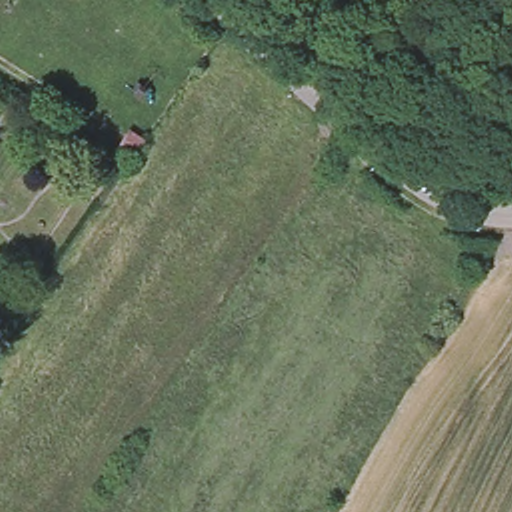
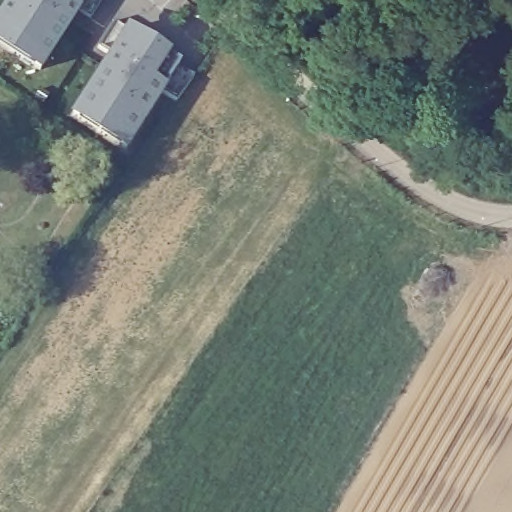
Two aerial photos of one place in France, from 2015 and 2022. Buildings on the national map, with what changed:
new [(9,0),(100,0),(89,17),(79,9),(39,72),(0,47),(0,15),(9,0)]
new [(112,55),(100,47),(117,21),(130,29),(171,55),(181,64),(194,74),(176,100),(166,91),(124,151),(71,116),(112,55)]

